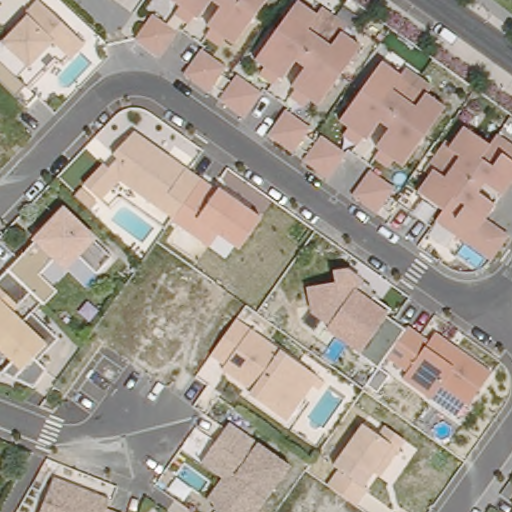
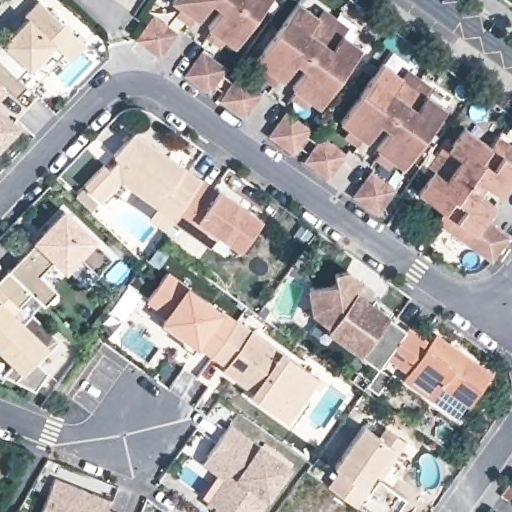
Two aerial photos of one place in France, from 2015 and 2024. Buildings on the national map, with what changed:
unchanged [(73,60),(53,42),(23,77),(29,82),(16,94),(0,78),(0,43),(40,0),(44,0),(87,42),(73,60)]
unchanged [(209,30),(222,10),(213,5),(201,21),(175,0),(269,0),(235,47),(209,30)]
unchanged [(294,86),(306,69),(299,64),(287,80),(260,59),(299,4),(319,18),(326,8),(351,28),(348,35),(365,50),(322,106),(294,86)]
unchanged [(155,15),(178,34),(164,57),(139,39),(155,15)]
unchanged [(204,49),(228,67),(214,91),(188,75),(204,49)]
unchanged [(405,76),(410,69),(434,86),(430,95),(448,109),(406,170),(380,151),(392,130),(381,125),(369,144),(342,120),(384,63),(405,76)]
unchanged [(241,75),(264,93),(249,116),(225,100),(241,75)]
new [(0,98),(0,78),(10,88),(0,98)]
new [(0,151),(0,109),(21,129),(0,151)]
unchanged [(288,110),(312,129),(295,154),(272,135),(288,110)]
unchanged [(434,169),(430,167),(444,146),(449,150),(463,129),(490,145),(499,134),(512,143),(512,187),(504,197),(489,190),(485,198),(497,208),(490,220),(509,236),(494,259),(438,222),(444,211),(419,191),(434,169)]
unchanged [(134,131),(201,181),(178,215),(122,179),(103,199),(88,184),(134,131)]
unchanged [(322,137),(345,155),(330,176),(307,160),(322,137)]
unchanged [(370,170),(396,187),(381,211),(356,195),(370,170)]
unchanged [(219,189),(262,219),(240,250),(220,236),(210,248),(168,220),(174,213),(178,215),(201,181),(219,189)]
unchanged [(66,207),(114,255),(101,271),(85,257),(72,271),(56,256),(41,273),(60,293),(48,306),(31,290),(17,312),(29,322),(35,315),(58,336),(40,360),(48,368),(35,387),(6,370),(11,362),(0,353),(0,277),(35,241),(66,207)]
new [(186,283),(223,309),(237,321),(211,358),(198,347),(160,320),(165,313),(147,300),(168,270),(186,283)]
unchanged [(364,275),(362,295),(393,312),(389,318),(405,330),(408,326),(432,341),(437,335),(492,372),(471,407),(443,386),(433,401),(404,381),(409,373),(390,356),(380,367),(329,332),(332,327),(313,315),(308,290),(337,281),(336,270),(364,275)]
unchanged [(318,379),(291,423),(250,395),(252,391),(211,358),(239,319),(318,379)]
unchanged [(338,470),(333,465),(361,425),(382,436),(388,427),(404,440),(359,505),(329,483),(338,470)]
unchanged [(260,445),(293,469),(267,505),(260,512),(220,512),(221,510),(208,498),(224,476),(206,461),(230,426),(260,445)]
unchanged [(111,499),(107,507),(117,512),(44,512),(58,477),(111,499)]

